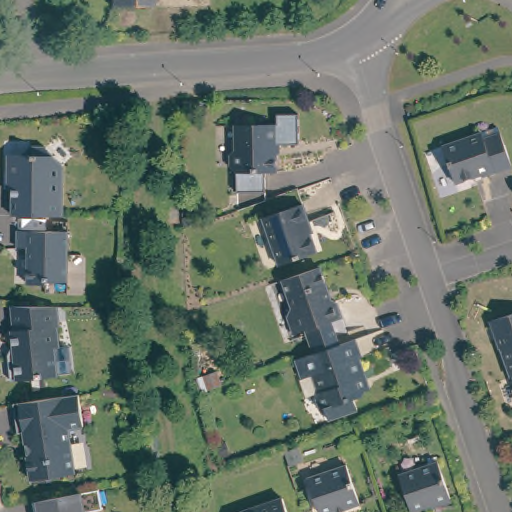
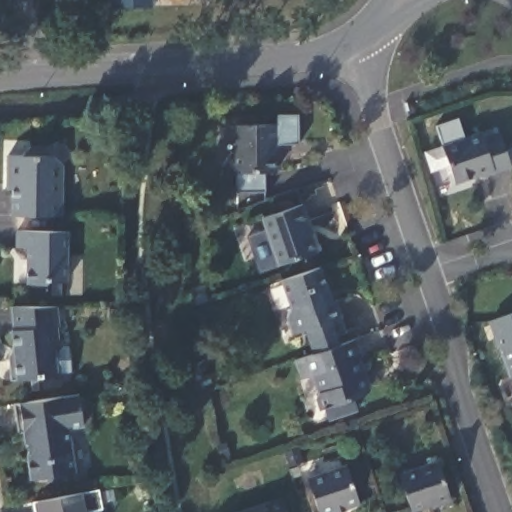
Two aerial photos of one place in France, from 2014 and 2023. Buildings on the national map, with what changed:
unchanged [(146,6),(107,6),(107,0),(146,0),(146,6)]
unchanged [(271,109),(293,108),(293,139),(271,139),(271,166),(260,166),(260,186),(232,186),(232,166),(227,162),(226,149),(231,143),(231,120),(272,119),(271,109)]
unchanged [(481,133),(482,139),(499,134),(511,166),(493,172),(492,170),(455,184),(442,146),(481,133)]
unchanged [(68,165),(67,216),(17,215),(17,184),(12,184),(13,155),(27,155),(36,147),(51,147),(68,165)]
unchanged [(306,221),(316,250),(277,263),(262,219),(302,205),(308,221),(306,221)]
unchanged [(27,284),(28,247),(17,247),(17,231),(68,231),(67,281),(49,281),(46,285),(27,284)]
unchanged [(332,302),(335,301),(341,318),(292,335),(286,316),(291,306),(282,280),(287,278),(320,267),(332,302)]
unchanged [(72,372),(57,374),(57,376),(11,380),(9,360),(14,350),(12,330),(15,330),(12,306),(27,306),(57,307),(59,326),(57,327),(59,347),(55,348),(55,349),(70,347),(72,372)]
unchanged [(490,321),(512,313),(512,377),(510,377),(490,321)]
unchanged [(362,378),(366,390),(363,395),(354,398),(358,410),(329,420),(325,408),(322,410),(317,397),(320,392),(313,375),(302,378),(296,360),(297,360),(328,348),(356,340),(362,358),(360,358),(364,373),(362,378)]
unchanged [(27,453),(31,453),(30,445),(26,446),(24,432),(18,433),(14,404),(46,399),(79,394),(84,426),(69,428),(76,473),(31,480),(27,453)]
unchanged [(412,511),(399,474),(438,460),(451,497),(412,511)]
unchanged [(328,512),(318,512),(307,478),(346,465),(359,504),(346,509),(336,512),(335,512),(334,510),(328,512)]
unchanged [(67,496),(99,490),(103,509),(88,512),(35,512),(33,502),(67,496)]
unchanged [(286,512),(244,512),(282,499),(286,512)]

